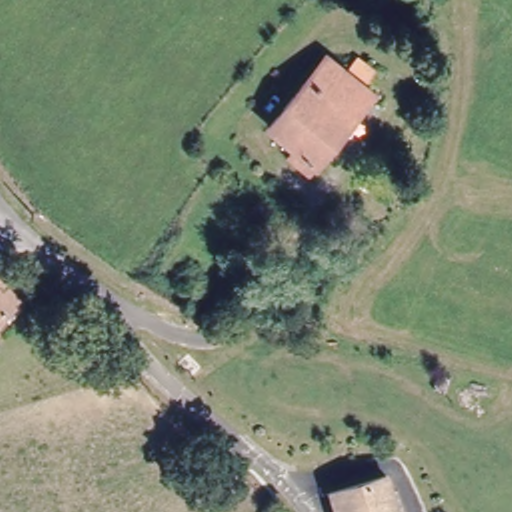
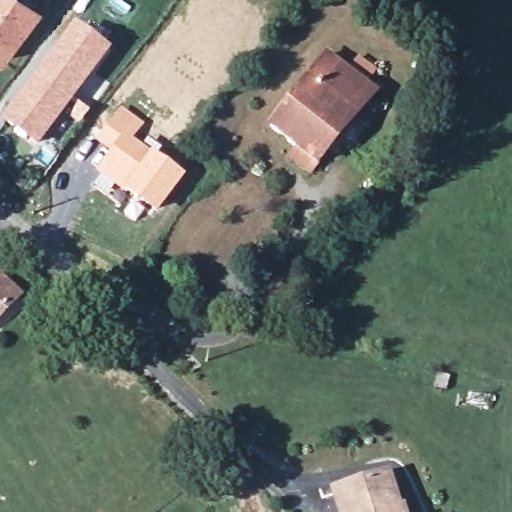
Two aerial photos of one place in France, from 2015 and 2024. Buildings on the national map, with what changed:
new [(34,0),(45,9),(4,63),(0,60),(0,0),(34,0)]
new [(111,51),(36,149),(0,122),(75,23),(111,51)]
unchanged [(321,59),(337,71),(344,64),(350,69),(356,62),(375,76),(362,90),(372,98),(305,180),(287,164),(295,154),(265,130),(292,95),(321,59)]
new [(108,151),(95,140),(121,109),(144,126),(133,140),(185,178),(155,216),(92,171),(108,151)]
new [(23,296),(0,321),(0,275),(23,296)]
demolished [(20,297),(0,319),(0,280),(20,297)]
unchanged [(394,512),(337,512),(332,494),(385,481),(394,512)]

